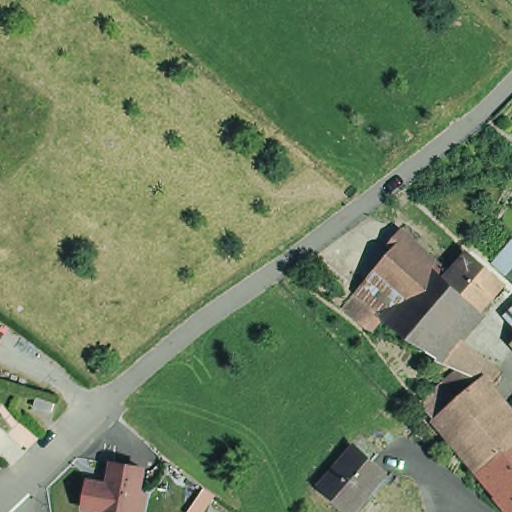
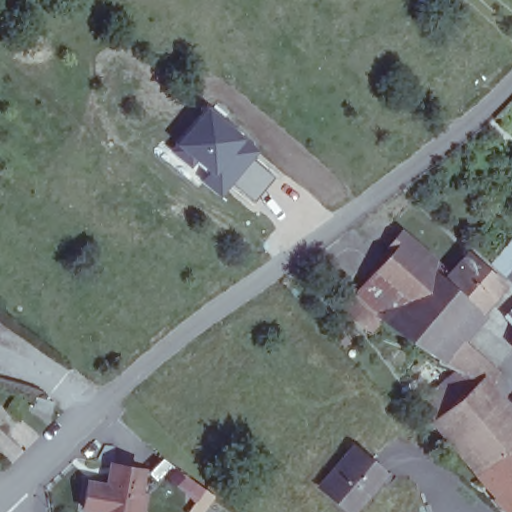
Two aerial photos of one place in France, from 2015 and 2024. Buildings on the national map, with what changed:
new [(253,202),(232,184),(221,197),(200,179),(205,172),(172,142),(207,101),(260,150),(254,157),(275,175),(253,202)]
unchanged [(437,361),(435,359),(437,357),(382,319),(372,330),(365,327),(355,319),(369,304),(357,292),(375,270),(389,254),(401,240),(431,265),(436,259),(452,274),(469,255),(502,284),(480,309),(470,319),(468,322),(454,338),(467,353),(455,369),(437,361)]
unchanged [(509,273),(512,270),(512,276),(509,273)]
unchanged [(451,439),(421,404),(459,371),(459,370),(480,379),(480,380),(475,383),(512,427),(512,512),(509,512),(487,486),(489,484),(499,476),(475,448),(465,456),(451,439)]
unchanged [(55,400),(52,411),(34,406),(36,395),(55,400)]
unchanged [(311,489),(344,451),(376,479),(347,512),(335,512),(311,489)]
unchanged [(109,484),(112,464),(143,469),(139,492),(144,499),(141,512),(103,512),(104,511),(84,508),(89,481),(109,484)]

